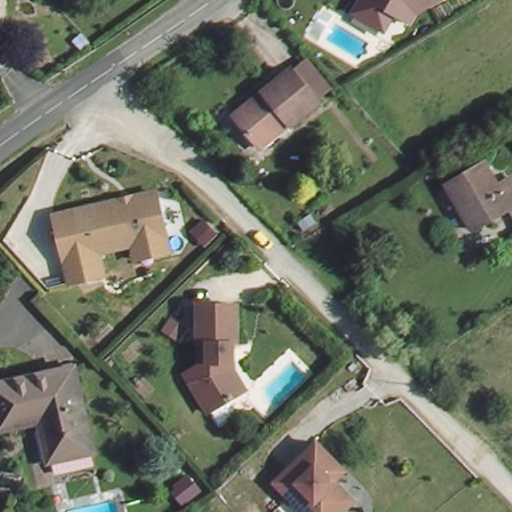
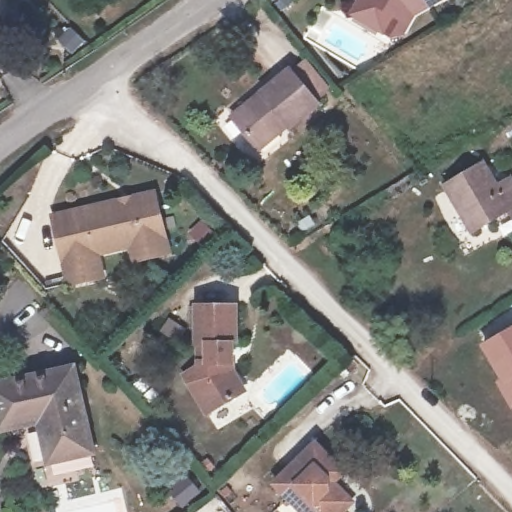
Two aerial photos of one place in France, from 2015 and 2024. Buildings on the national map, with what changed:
unchanged [(394,17),(384,33),(348,10),(354,0),(446,0),(412,19),(394,17)]
unchanged [(254,136),(232,109),(289,64),(316,97),(288,120),(259,142),(254,136)]
unchanged [(489,160),(501,182),(512,176),(512,212),(511,209),(476,228),(449,181),(489,160)]
unchanged [(128,257),(123,244),(90,251),(96,275),(63,283),(44,215),(148,190),(158,235),(163,249),(128,257)]
unchanged [(209,411),(186,373),(201,365),(201,342),(198,342),(198,303),(237,303),(238,342),(233,342),(234,361),(234,368),(246,388),(241,392),(209,411)]
new [(512,326),(512,409),(511,410),(494,381),(499,379),(479,344),(512,326)]
unchanged [(48,464),(38,426),(0,433),(0,386),(75,370),(95,453),(48,464)]
unchanged [(324,478),(344,498),(330,512),(295,512),(266,482),(307,440),(336,468),(324,478)]

